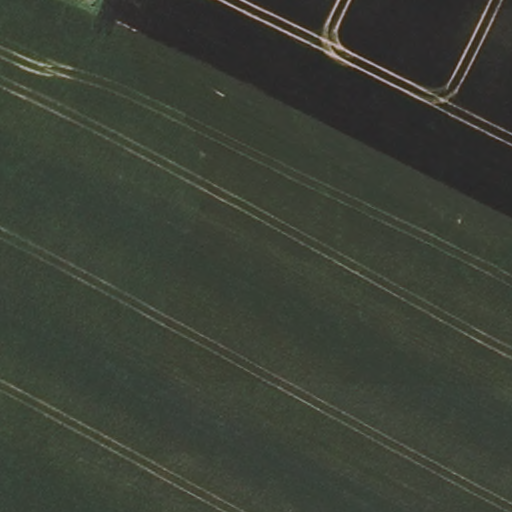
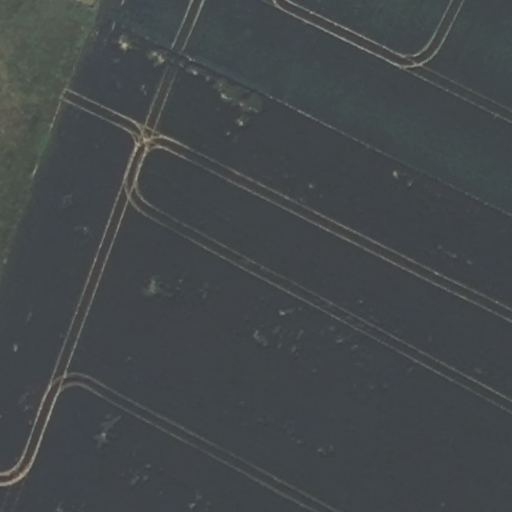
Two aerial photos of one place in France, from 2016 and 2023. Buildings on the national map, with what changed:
[]

